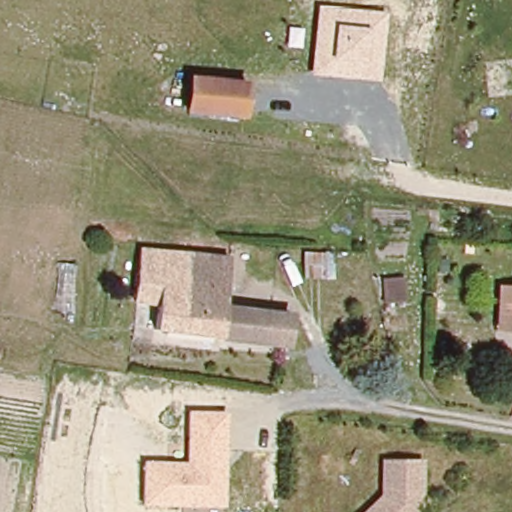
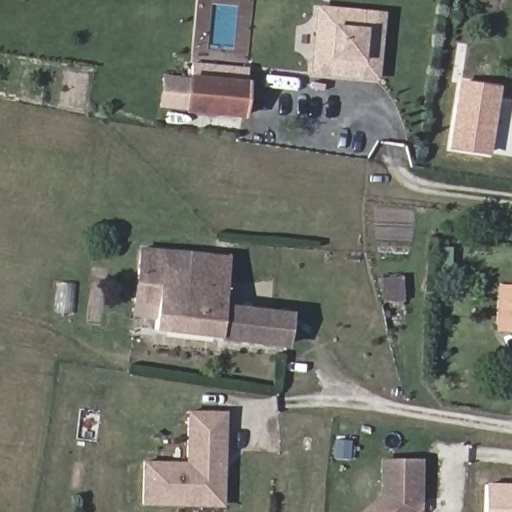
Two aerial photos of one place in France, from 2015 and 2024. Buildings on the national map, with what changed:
unchanged [(378,80),(309,75),(316,6),(385,11),(378,80)]
unchanged [(249,115),(171,105),(176,69),(254,80),(249,115)]
new [(500,86),(490,155),(447,149),(458,80),(500,86)]
unchanged [(144,245),(232,256),(225,307),(289,320),(285,343),(153,325),(155,310),(136,307),(138,294),(144,245)]
demolished [(306,277),(306,250),(329,250),(328,278),(306,277)]
unchanged [(386,302),(385,276),(406,275),(408,301),(386,302)]
unchanged [(505,289),(512,289),(512,327),(503,327),(505,289)]
unchanged [(224,507),(141,506),(142,461),(185,461),(186,411),(226,411),(224,507)]
unchanged [(416,510),(413,512),(361,512),(378,493),(380,455),(418,455),(416,510)]
new [(512,484),(512,512),(484,512),(485,483),(512,484)]

